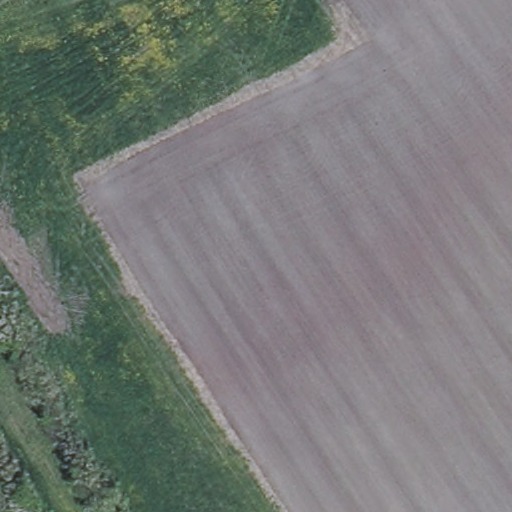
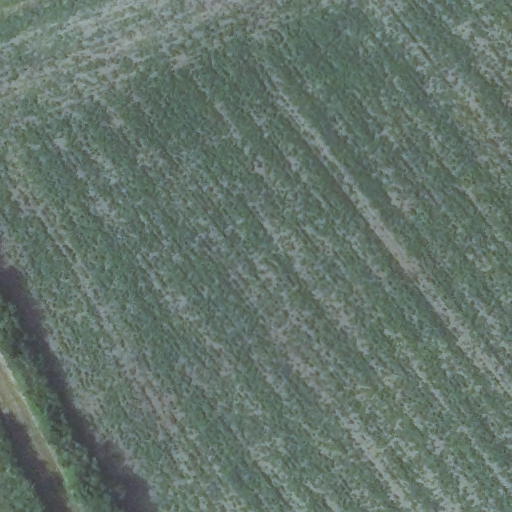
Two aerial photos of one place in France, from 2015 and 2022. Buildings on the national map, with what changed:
[]

